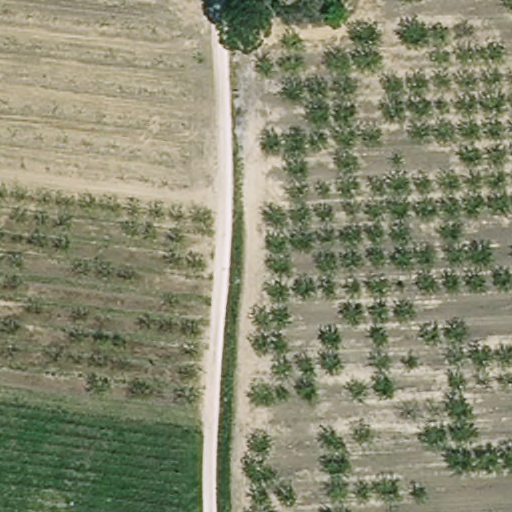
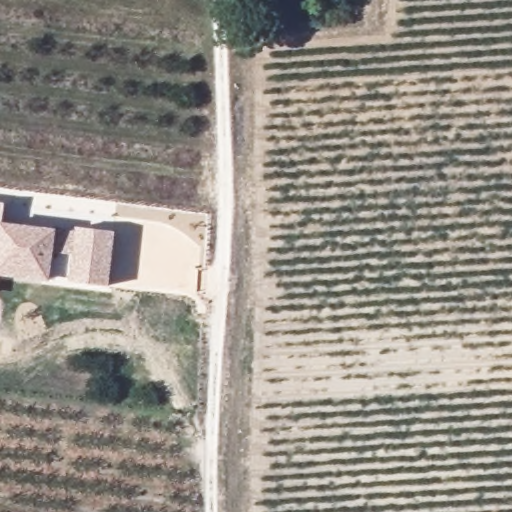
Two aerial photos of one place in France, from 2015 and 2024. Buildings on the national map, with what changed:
new [(3,222),(56,229),(74,232),(75,227),(115,233),(108,286),(69,280),(51,277),(50,282),(0,274),(0,202),(5,203),(3,222)]

